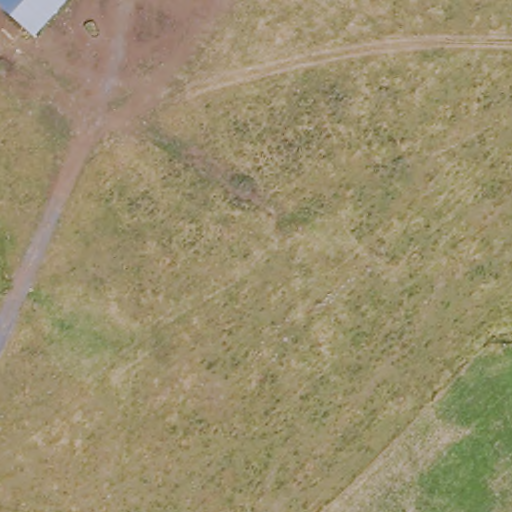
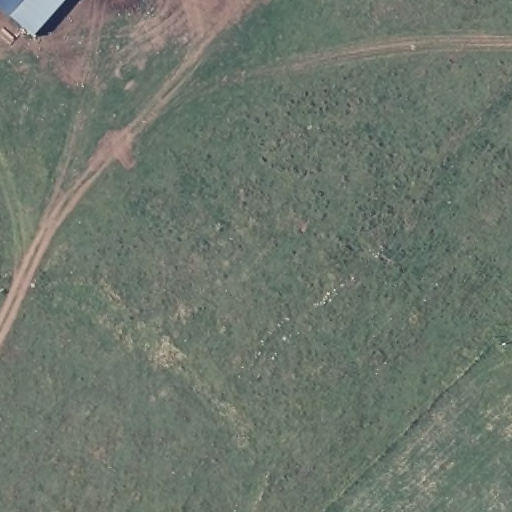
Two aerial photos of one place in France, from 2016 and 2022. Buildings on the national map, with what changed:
unchanged [(0,14),(0,0),(62,0),(28,39),(0,14)]

